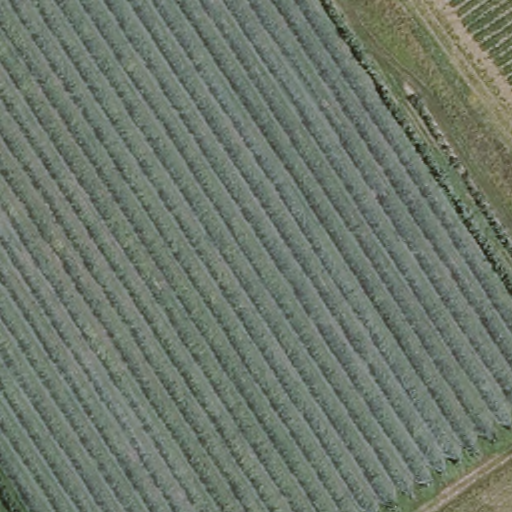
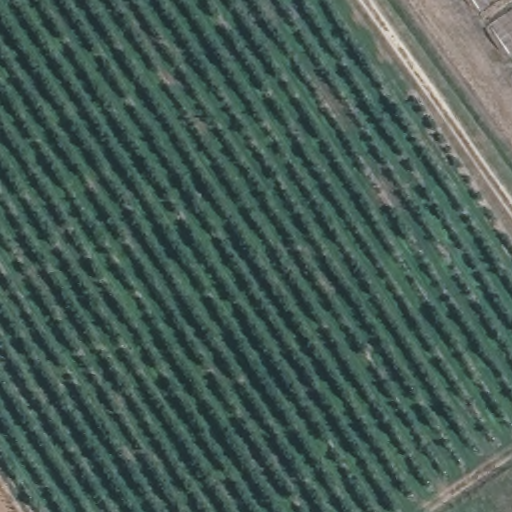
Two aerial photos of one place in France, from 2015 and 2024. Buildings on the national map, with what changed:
new [(468,0),(512,0),(512,65),(468,0)]

